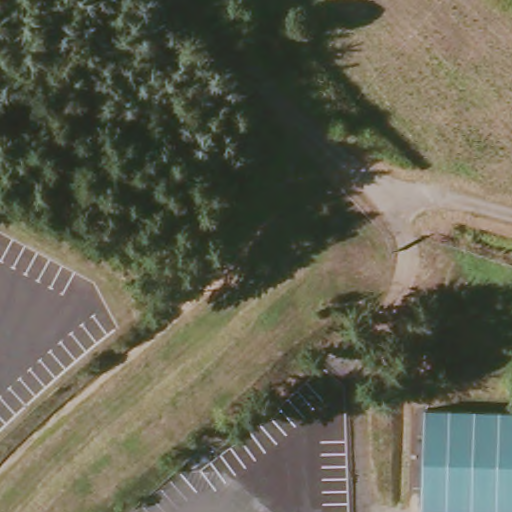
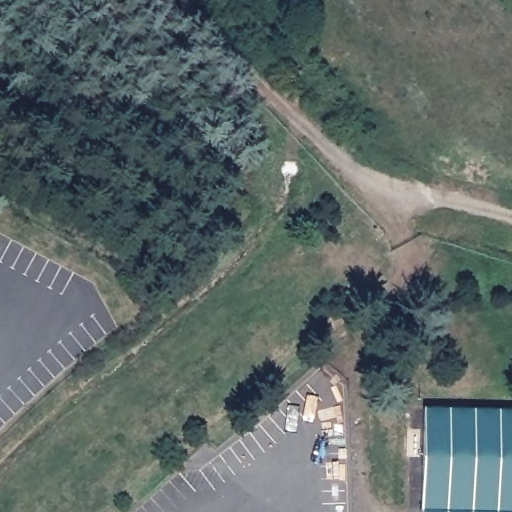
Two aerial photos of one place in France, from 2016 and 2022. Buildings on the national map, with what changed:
unchanged [(429,407),(512,410),(512,512),(423,512),(429,407)]

